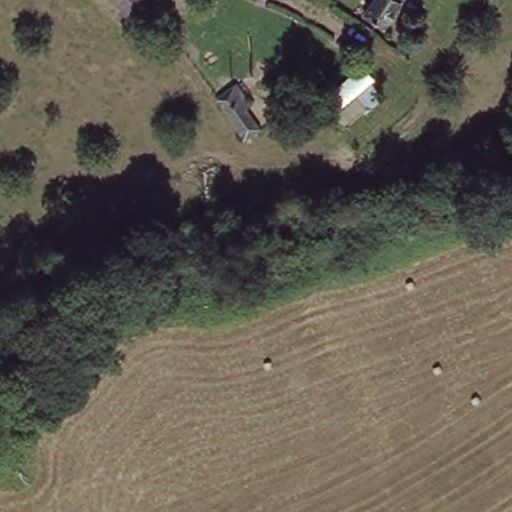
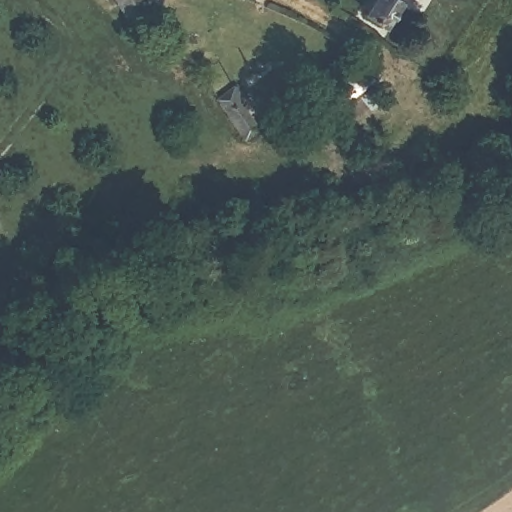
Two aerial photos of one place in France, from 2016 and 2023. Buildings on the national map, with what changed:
unchanged [(111,0),(152,0),(155,4),(128,24),(111,0)]
unchanged [(374,0),(401,0),(383,28),(365,15),(374,0)]
unchanged [(220,95),(238,82),(253,104),(249,108),(262,128),(251,136),(220,95)]

